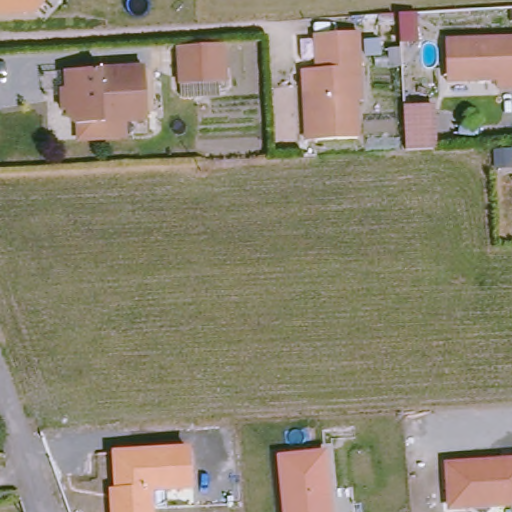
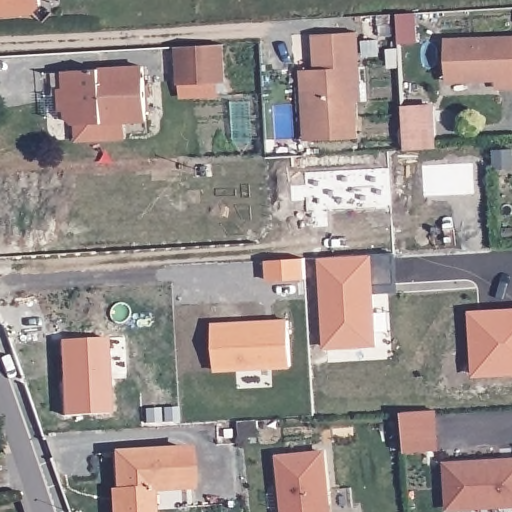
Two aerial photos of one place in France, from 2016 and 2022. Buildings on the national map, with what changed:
unchanged [(36,13),(0,15),(0,0),(48,0),(48,4),(36,13)]
unchanged [(359,33),(360,66),(355,66),(357,137),(307,138),(305,69),(315,68),(315,55),(308,53),(307,35),(359,33)]
unchanged [(498,85),(497,78),(447,80),(446,40),(512,39),(512,85),(498,85)]
unchanged [(224,43),(224,82),(180,84),(180,45),(224,43)]
unchanged [(145,119),(75,123),(70,111),(65,111),(63,108),(63,97),(68,93),(69,74),(145,67),(145,119)]
unchanged [(400,109),(430,107),(433,149),(402,151),(400,109)]
new [(388,206),(309,210),(306,173),(391,165),(388,206)]
new [(389,331),(373,332),(375,345),(325,348),(320,257),(393,253),(395,284),(395,293),(371,294),(372,313),(387,311),(389,331)]
new [(303,258),(304,278),(267,281),(266,261),(303,258)]
new [(470,312),(512,311),(512,375),(472,376),(470,312)]
new [(287,321),(290,366),(214,371),(211,326),(287,321)]
new [(60,340),(105,338),(109,413),(65,415),(60,340)]
new [(407,451),(403,410),(438,409),(440,448),(407,451)]
unchanged [(192,489),(153,492),(154,512),(110,512),(108,489),(113,489),(111,451),(190,446),(192,489)]
unchanged [(334,512),(282,512),(277,454),(329,448),(334,512)]
unchanged [(512,457),(512,508),(446,510),(443,461),(512,457)]

